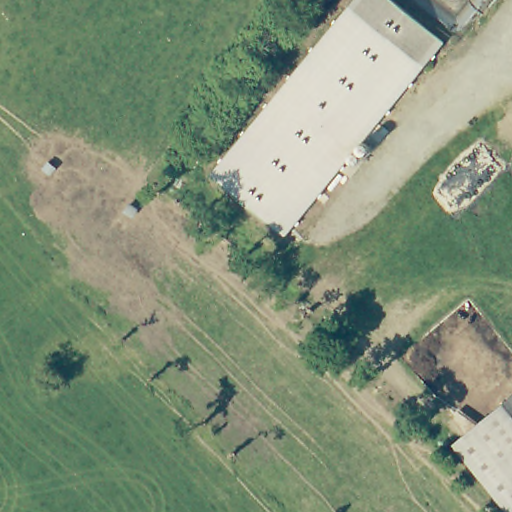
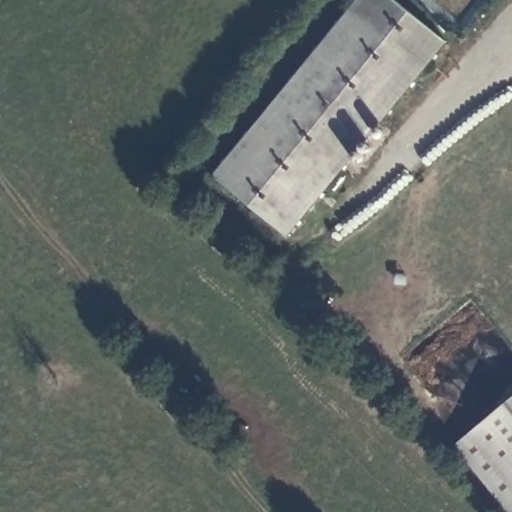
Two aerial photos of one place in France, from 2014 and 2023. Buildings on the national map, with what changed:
unchanged [(211,176),(234,149),(348,14),(359,0),(397,0),(446,41),(415,80),(307,210),(286,237),(211,176)]
unchanged [(512,401),(512,498),(489,472),(464,443),(512,401)]

